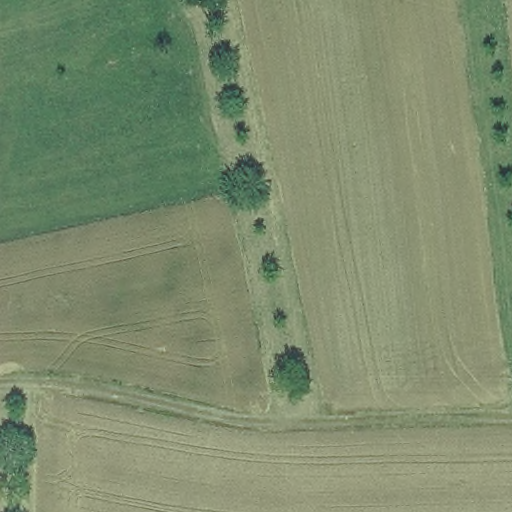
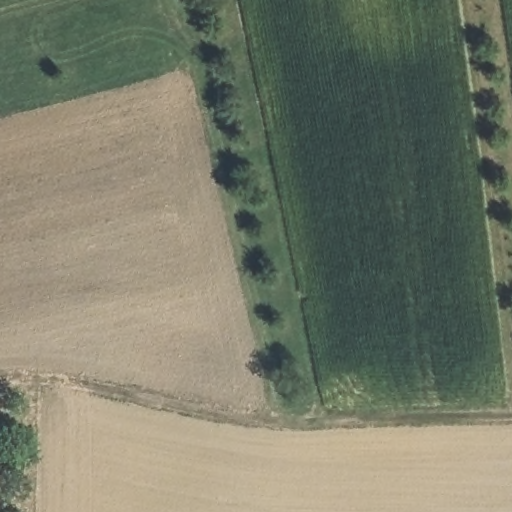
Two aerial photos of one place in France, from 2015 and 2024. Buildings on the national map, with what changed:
[]

